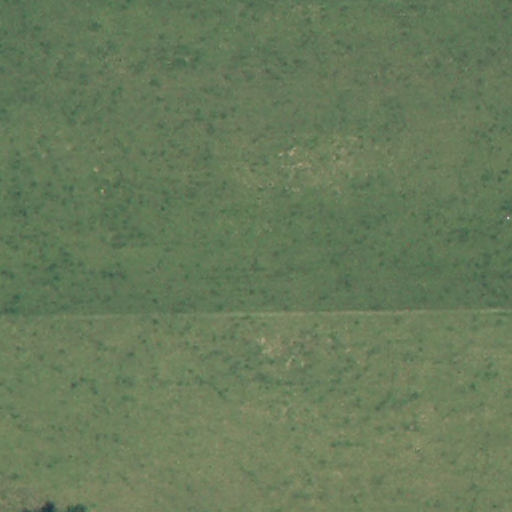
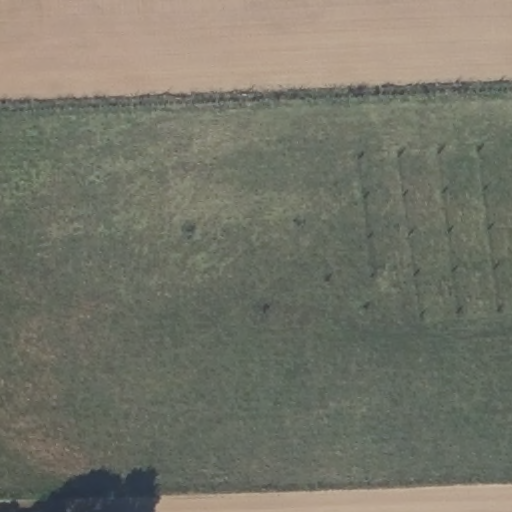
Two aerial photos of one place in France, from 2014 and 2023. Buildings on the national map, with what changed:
[]

